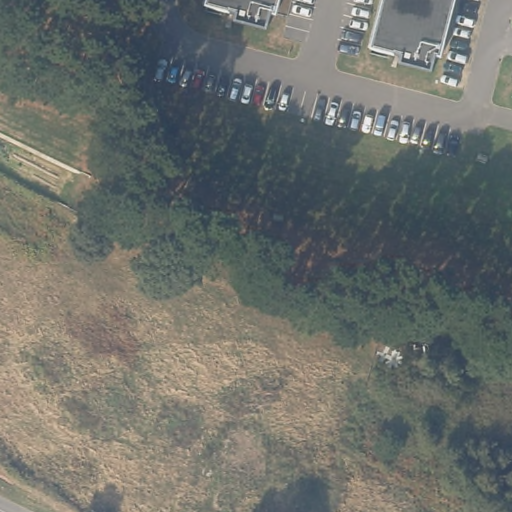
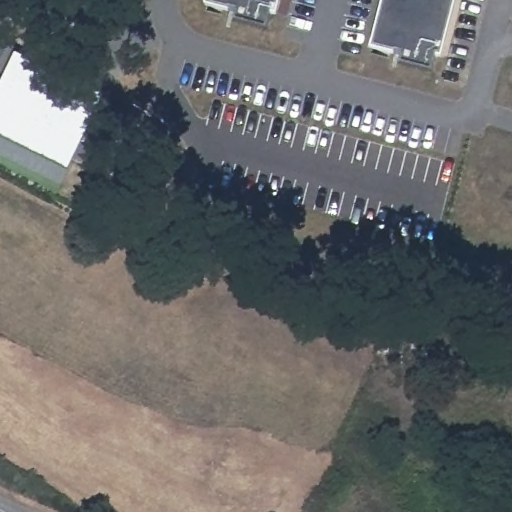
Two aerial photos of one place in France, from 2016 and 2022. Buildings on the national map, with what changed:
unchanged [(282,27),(202,6),(203,0),(289,0),(282,27)]
unchanged [(438,68),(368,50),(380,0),(455,0),(438,68)]
new [(102,90),(69,167),(0,137),(0,81),(15,52),(102,90)]

